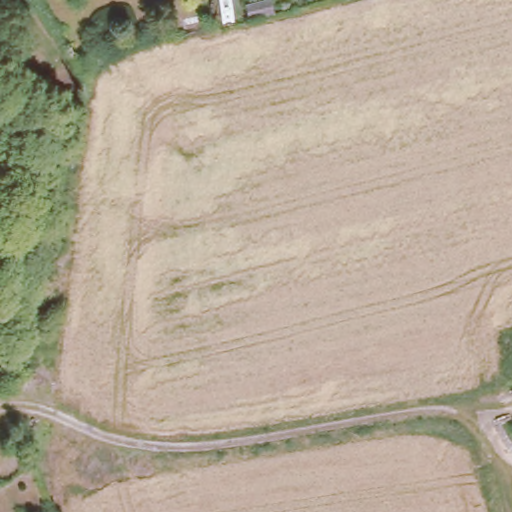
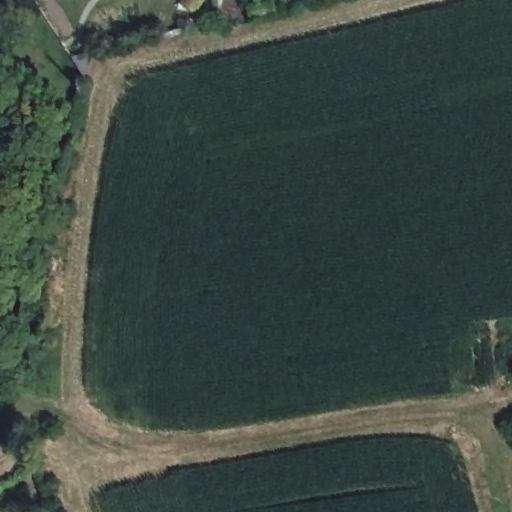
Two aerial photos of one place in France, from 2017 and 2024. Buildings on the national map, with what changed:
unchanged [(272,2),(274,13),(250,17),(247,7),(254,5),(272,2)]

